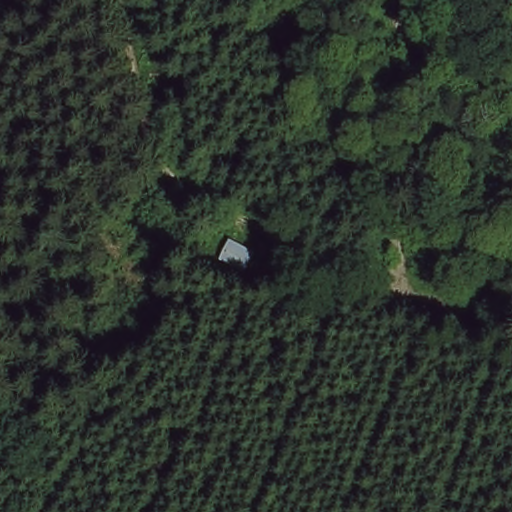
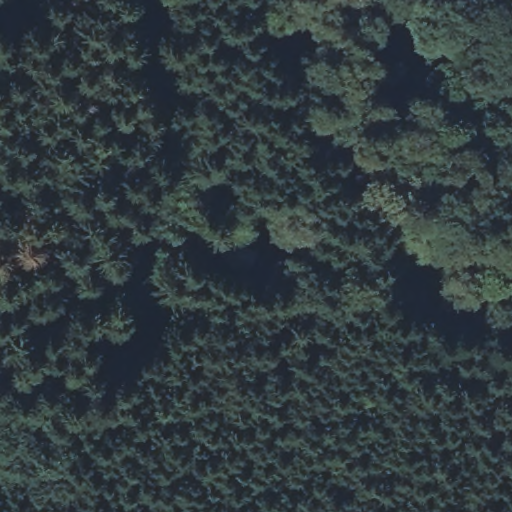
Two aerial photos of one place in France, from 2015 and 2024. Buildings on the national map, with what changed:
unchanged [(224,228),(261,244),(249,274),(221,262),(224,228)]

